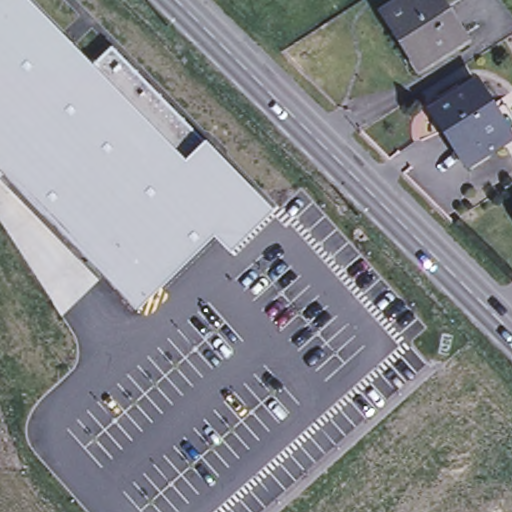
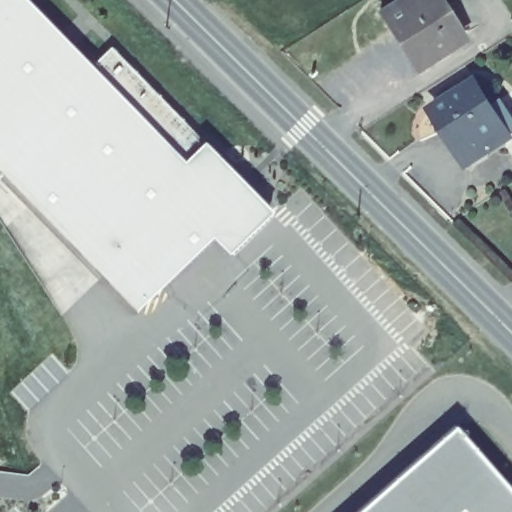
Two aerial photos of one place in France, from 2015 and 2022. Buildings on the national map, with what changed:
unchanged [(111,45),(273,210),(229,255),(212,238),(135,311),(2,175),(0,177),(0,0),(29,0),(90,64),(111,45)]
unchanged [(440,0),(463,37),(420,63),(398,30),(393,32),(380,14),(402,0),(440,0)]
unchanged [(475,82),(510,137),(467,164),(432,110),(475,82)]
new [(455,425),(512,490),(512,512),(357,512),(455,425)]

